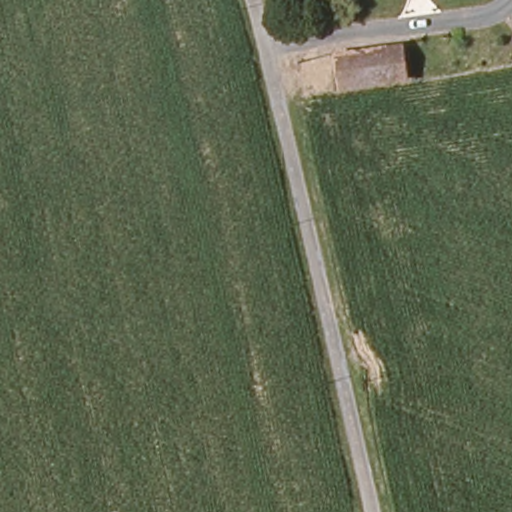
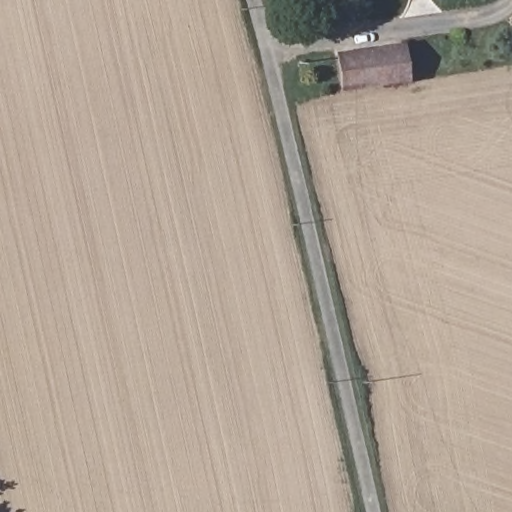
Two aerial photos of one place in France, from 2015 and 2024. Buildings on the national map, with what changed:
unchanged [(407,86),(345,91),(342,61),(405,54),(407,86)]

